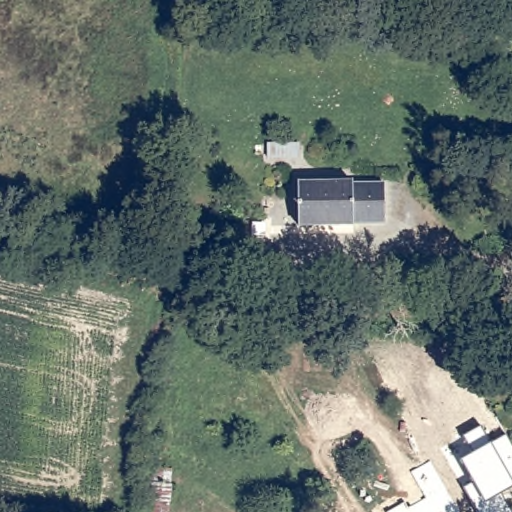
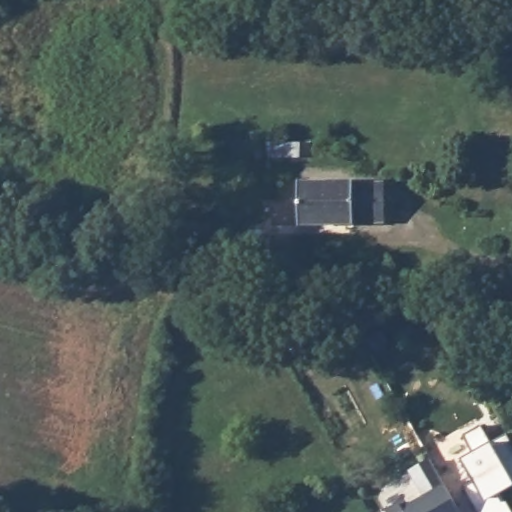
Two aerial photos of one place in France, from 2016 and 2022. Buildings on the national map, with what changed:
unchanged [(383,219),(351,219),(351,221),(296,220),(297,178),(353,178),(353,181),(384,181),(383,219)]
unchanged [(462,459),(474,452),(464,434),(480,425),(492,442),(507,434),(512,443),(512,488),(501,494),(512,512),(480,512),(465,486),(473,481),(462,459)]
unchanged [(411,469),(431,459),(447,485),(461,512),(388,512),(423,493),(411,469)]
unchanged [(178,467),(175,512),(142,512),(145,469),(178,467)]

